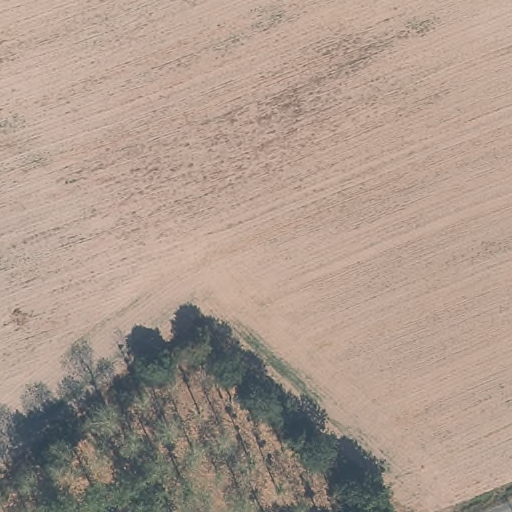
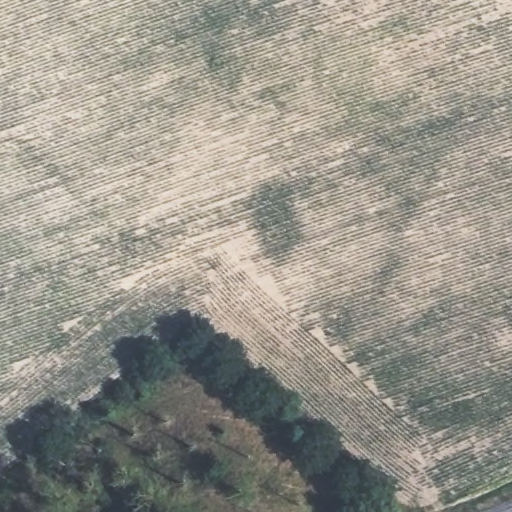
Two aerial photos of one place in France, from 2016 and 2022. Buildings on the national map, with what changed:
[]

